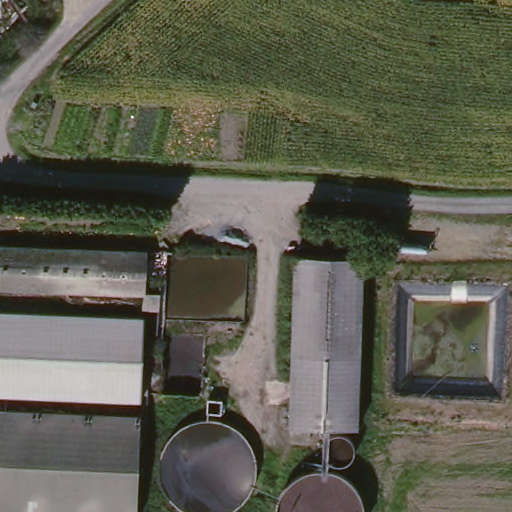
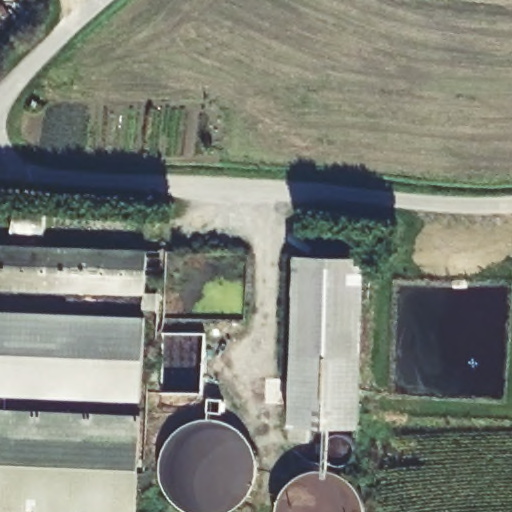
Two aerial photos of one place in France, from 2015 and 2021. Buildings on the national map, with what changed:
unchanged [(154,251),(152,291),(0,284),(0,245),(154,251)]
unchanged [(375,426),(293,424),(303,251),(382,251),(375,426)]
unchanged [(146,330),(144,392),(0,387),(0,327),(146,330)]
unchanged [(0,512),(0,409),(144,415),(141,512),(0,512)]

